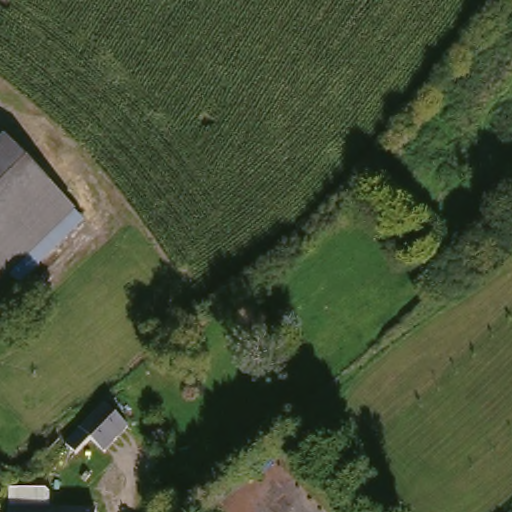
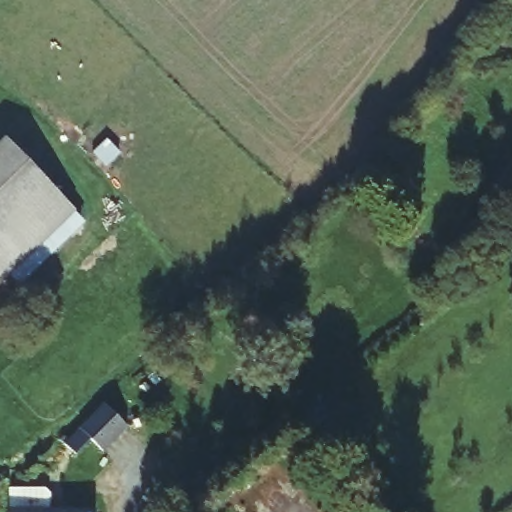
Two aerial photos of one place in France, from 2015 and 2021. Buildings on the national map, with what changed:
unchanged [(11,139),(72,205),(0,271),(0,149),(11,139)]
unchanged [(128,429),(103,453),(91,441),(75,456),(65,445),(106,405),(128,429)]
unchanged [(5,506),(5,486),(41,485),(44,490),(45,505),(63,505),(63,512),(5,512),(5,506)]

